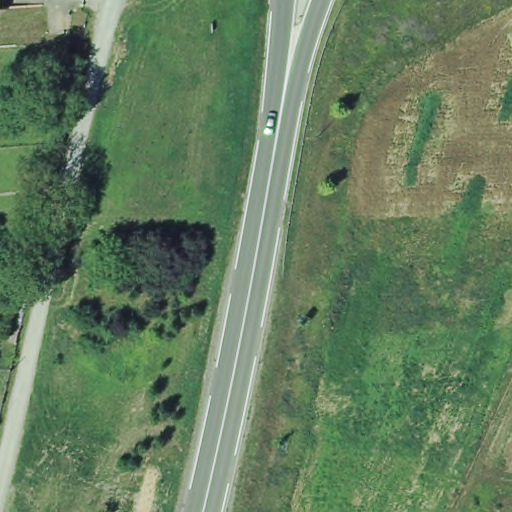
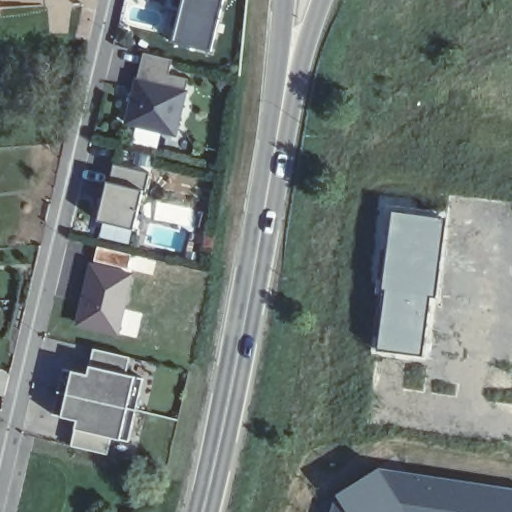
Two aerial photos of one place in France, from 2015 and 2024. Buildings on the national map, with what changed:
new [(172,42),(180,0),(221,0),(210,51),(172,42)]
new [(169,56),(162,84),(187,91),(175,136),(123,124),(135,79),(133,79),(141,49),(169,56)]
new [(150,173),(147,191),(137,230),(98,221),(107,182),(112,164),(150,173)]
new [(446,219),(437,297),(430,297),(422,357),(378,350),(386,291),(382,290),(393,211),(446,219)]
new [(129,276),(117,337),(75,328),(89,265),(129,276)]
new [(57,391),(62,365),(88,371),(91,349),(130,357),(128,376),(137,378),(128,409),(67,394),(57,391)]
new [(51,416),(57,391),(67,394),(128,409),(121,439),(112,437),(110,454),(70,445),(77,422),(51,416)]
new [(335,497),(379,469),(512,489),(512,512),(330,512),(335,497)]

